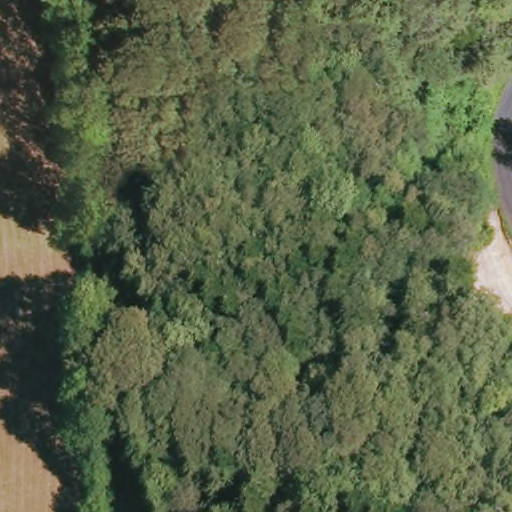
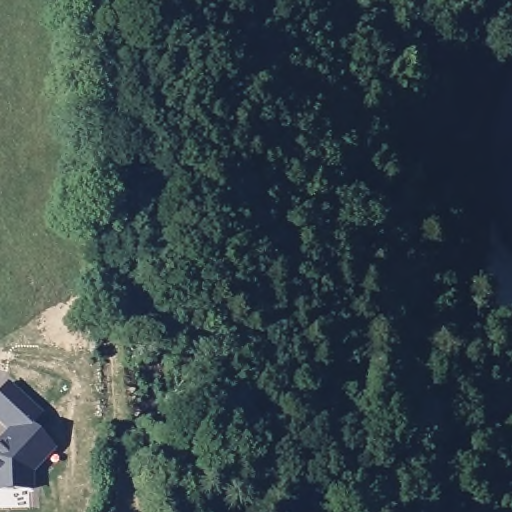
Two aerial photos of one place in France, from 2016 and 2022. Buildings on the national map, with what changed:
new [(8,378),(41,409),(30,420),(54,442),(32,466),(33,483),(0,485),(0,433),(9,423),(0,415),(0,387),(8,378)]

